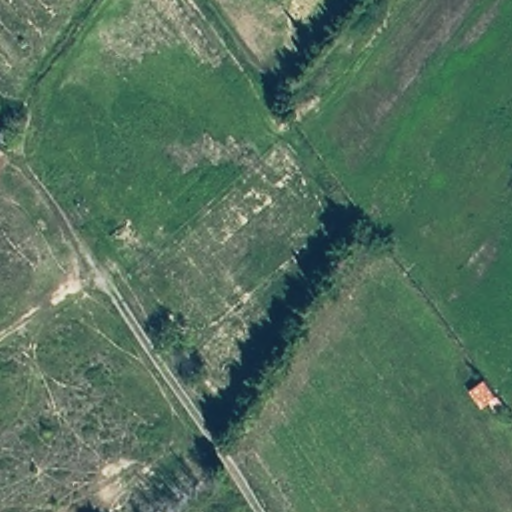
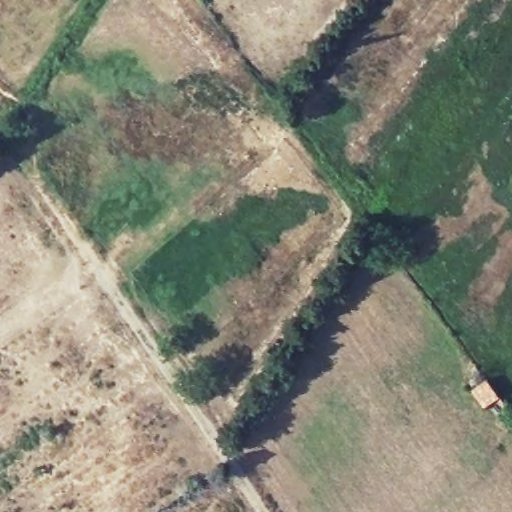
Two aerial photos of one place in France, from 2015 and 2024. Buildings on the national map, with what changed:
unchanged [(484,377),(498,398),(482,411),(468,390),(484,377)]

